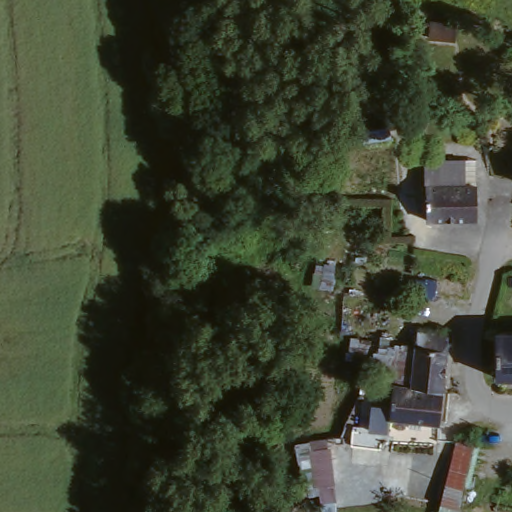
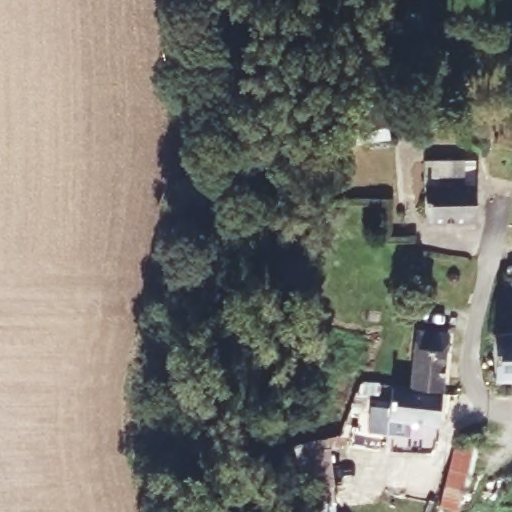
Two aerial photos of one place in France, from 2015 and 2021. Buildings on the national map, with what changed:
unchanged [(387,111),(391,137),(350,141),(348,117),(387,111)]
unchanged [(478,165),(479,180),(478,188),(476,225),(430,225),(430,166),(465,166),(478,165)]
unchanged [(504,326),(512,326),(512,368),(503,368),(504,326)]
unchanged [(421,332),(456,335),(451,390),(417,386),(421,332)]
unchanged [(451,390),(448,423),(397,420),(400,386),(417,386),(451,390)]
unchanged [(387,446),(351,443),(355,408),(389,413),(387,446)]
unchanged [(475,445),(464,490),(448,486),(459,441),(475,445)]

